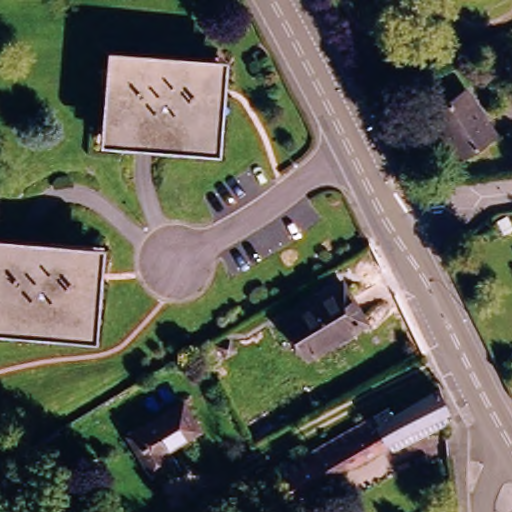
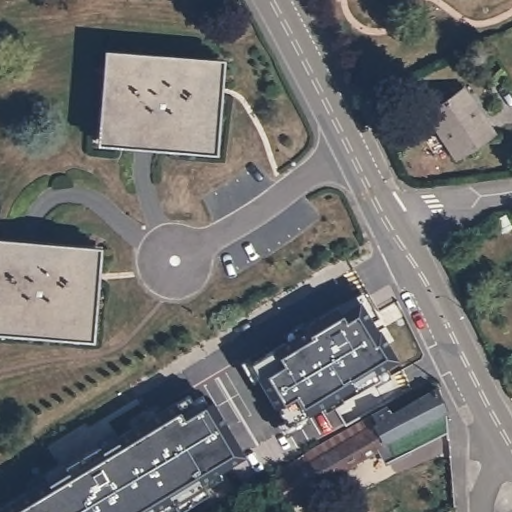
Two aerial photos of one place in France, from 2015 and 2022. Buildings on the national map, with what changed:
unchanged [(112,140),(118,61),(202,68),(221,70),(218,100),(215,149),(112,140)]
unchanged [(493,133),(458,157),(428,114),(464,90),(493,133)]
unchanged [(0,330),(0,249),(79,255),(97,257),(95,287),(91,336),(0,330)]
demolished [(345,298),(357,317),(350,321),(348,318),(319,335),(322,340),(302,350),(281,310),(340,277),(350,295),(345,298)]
new [(342,310),(361,298),(400,358),(380,371),(383,375),(357,390),(354,386),(340,395),(345,401),(326,411),(322,405),(305,415),(310,421),(285,435),(277,423),(285,420),(250,363),(275,348),(274,346),(301,330),(298,325),(337,303),(342,310)]
demolished [(217,360),(205,367),(193,346),(206,338),(217,360)]
unchanged [(393,410),(435,386),(445,403),(446,407),(442,410),(444,415),(392,444),(390,440),(321,476),(311,458),(305,447),(388,401),(393,410)]
new [(245,456),(203,481),(201,478),(172,495),(175,497),(155,510),(154,508),(147,512),(0,512),(0,507),(65,466),(64,465),(101,442),(102,444),(187,393),(245,456)]
demolished [(198,430),(163,453),(169,463),(150,475),(125,435),(180,401),(198,430)]
new [(311,458),(321,476),(285,497),(272,473),(305,447),(311,458)]

